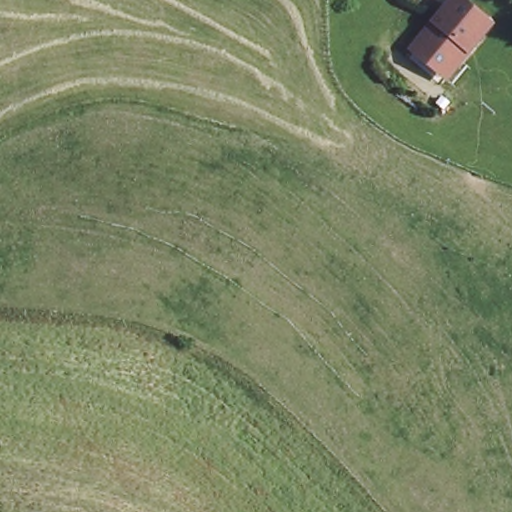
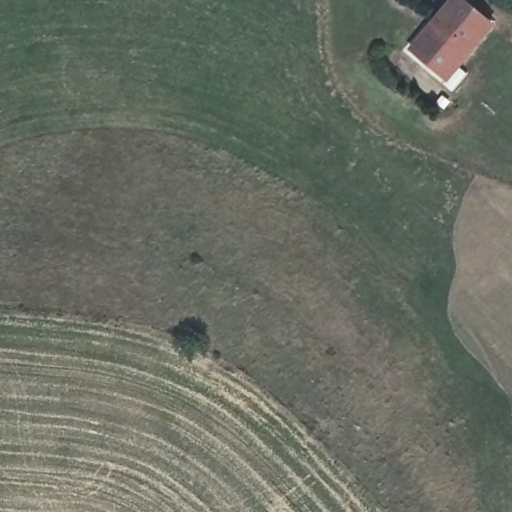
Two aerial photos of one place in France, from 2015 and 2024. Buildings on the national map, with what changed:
unchanged [(454,60),(442,73),(415,53),(459,0),(465,0),(497,25),(462,66),(454,60)]

